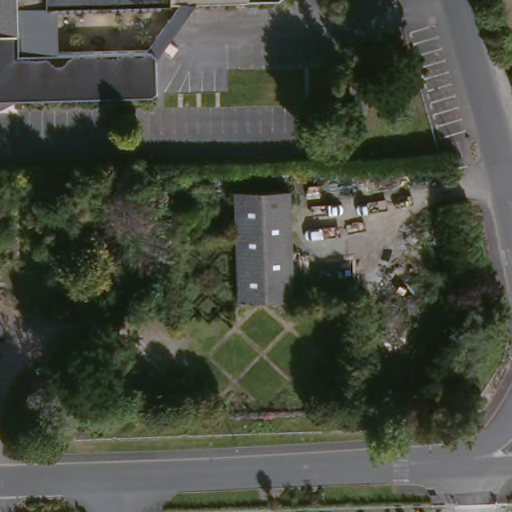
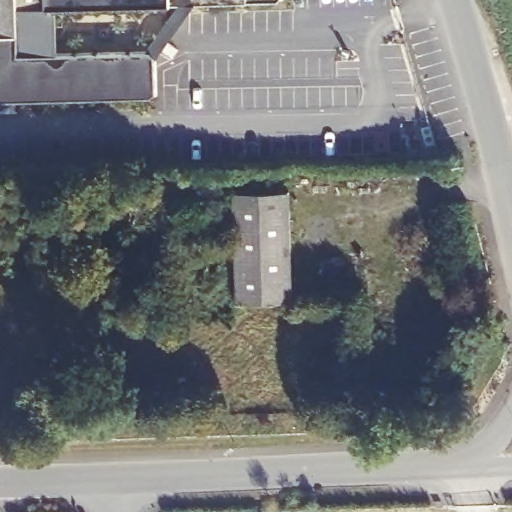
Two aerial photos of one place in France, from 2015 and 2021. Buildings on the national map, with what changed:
unchanged [(282,0),(282,3),(253,3),(201,4),(156,64),(156,100),(19,103),(0,103),(0,0),(282,0)]
unchanged [(287,194),(286,303),(235,303),(233,195),(287,194)]

